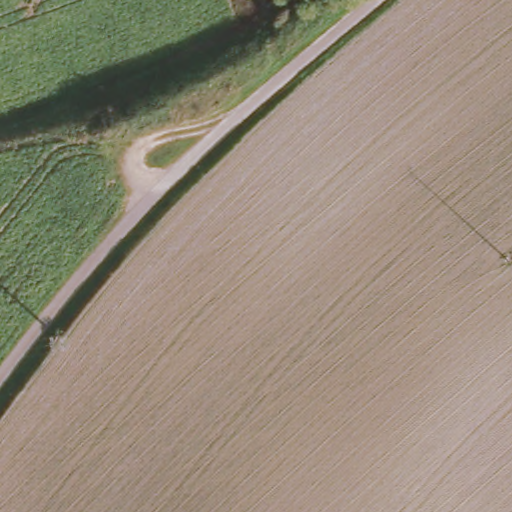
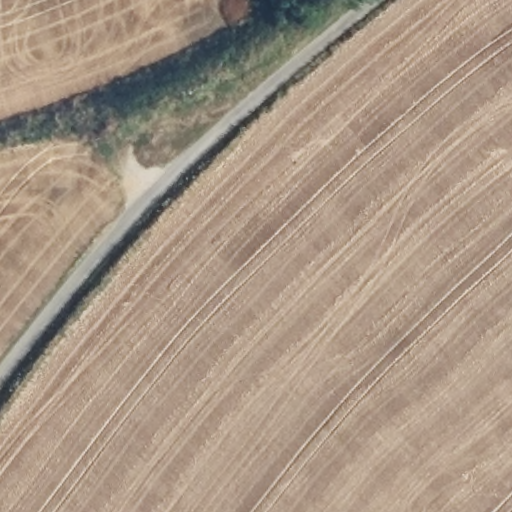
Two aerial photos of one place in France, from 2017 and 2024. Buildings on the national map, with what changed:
unchanged [(273,9),(271,0),(296,0),(273,9)]

